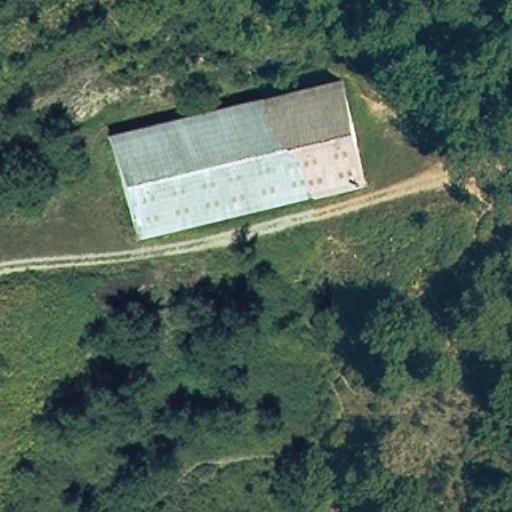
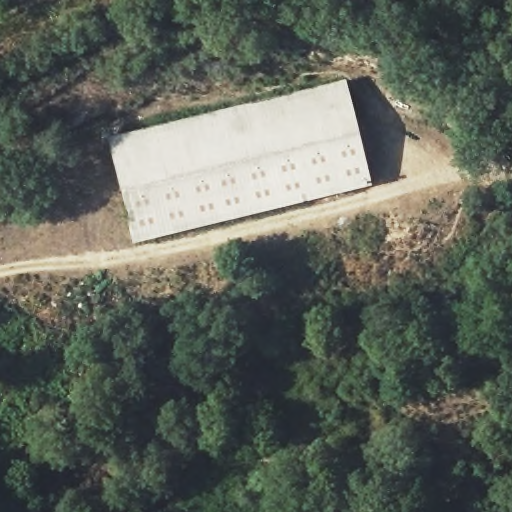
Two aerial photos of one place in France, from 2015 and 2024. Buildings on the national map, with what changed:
unchanged [(104,136),(349,75),(372,183),(129,240),(104,136)]

